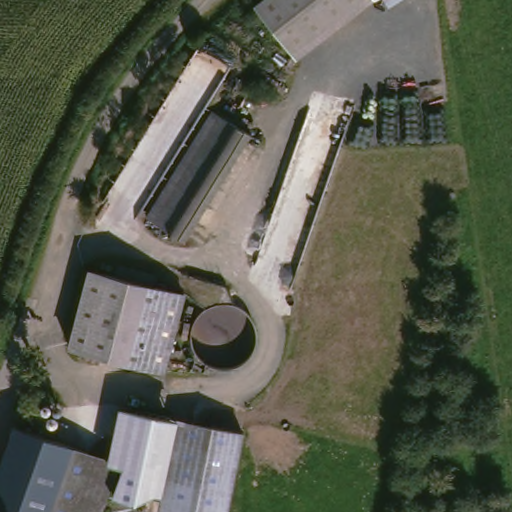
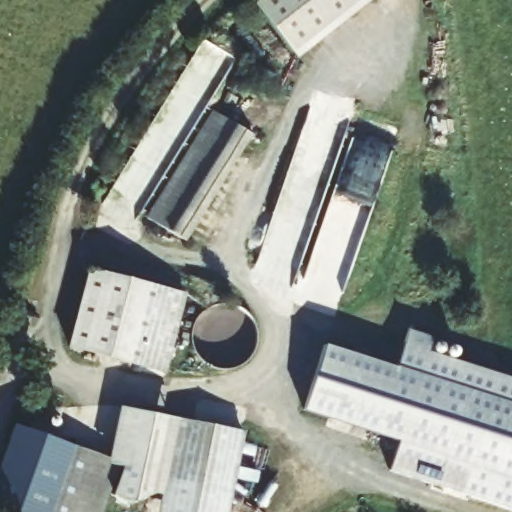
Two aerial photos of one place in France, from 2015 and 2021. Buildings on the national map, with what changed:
unchanged [(356,0),(294,52),(255,6),(263,0),(356,0)]
unchanged [(294,52),(356,0),(371,0),(298,57),(294,52)]
unchanged [(257,131),(193,238),(157,217),(223,110),(257,131)]
unchanged [(75,349),(95,272),(118,277),(158,287),(140,367),(75,349)]
unchanged [(188,294),(170,374),(140,367),(158,287),(172,290),(188,294)]
new [(406,339),(410,330),(452,347),(456,349),(458,353),(459,358),(459,362),(512,379),(512,510),(389,471),(399,444),(304,413),(326,346),(397,368),(406,339)]
unchanged [(120,409),(193,419),(193,422),(171,512),(159,512),(162,496),(154,494),(134,502),(111,494),(123,460),(116,458),(109,455),(120,409)]
unchanged [(224,512),(171,512),(193,419),(242,431),(224,512)]
unchanged [(105,512),(0,512),(0,482),(21,423),(123,460),(105,512)]

